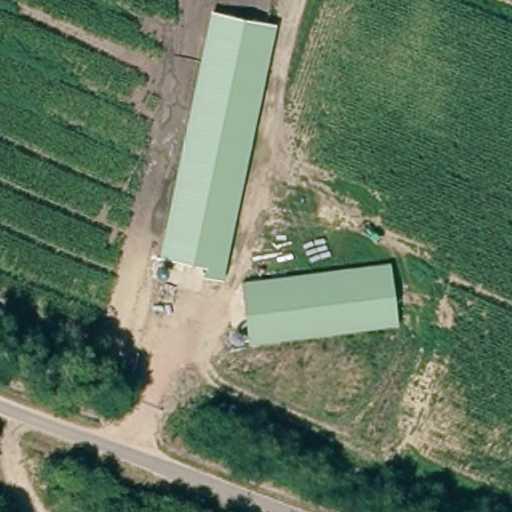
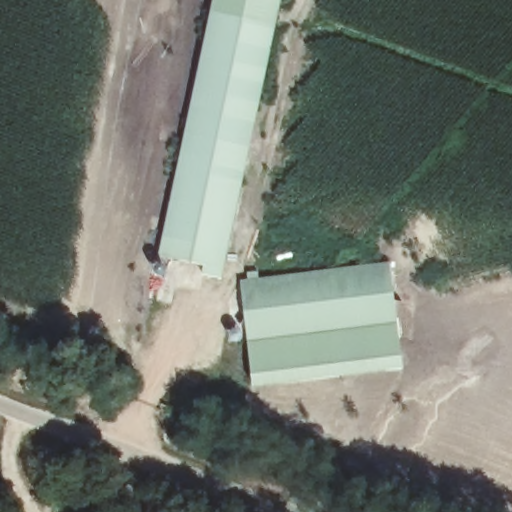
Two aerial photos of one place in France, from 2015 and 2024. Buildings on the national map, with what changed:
new [(214,0),(281,0),(275,24),(211,12),(214,0)]
unchanged [(211,12),(275,24),(222,278),(204,274),(205,264),(159,255),(211,12)]
unchanged [(240,279),(390,262),(396,323),(257,340),(245,327),(240,279)]
new [(257,340),(396,323),(403,367),(252,387),(245,327),(257,340)]

